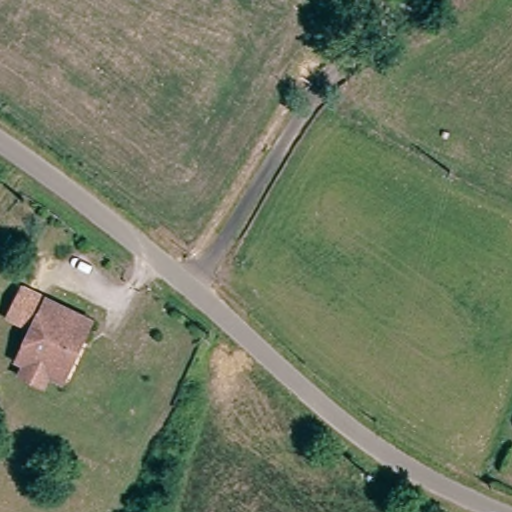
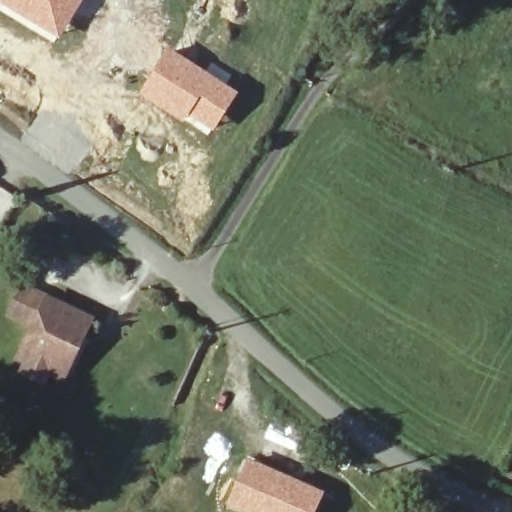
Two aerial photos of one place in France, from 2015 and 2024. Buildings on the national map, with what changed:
new [(0,6),(0,0),(82,0),(57,41),(0,6)]
new [(166,46),(237,92),(209,136),(184,120),(183,122),(136,94),(166,46)]
unchanged [(28,372),(34,359),(25,355),(41,326),(17,314),(33,284),(56,297),(100,321),(91,338),(86,336),(74,358),(80,361),(71,377),(57,370),(50,383),(28,372)]
new [(245,455),(324,492),(315,512),(236,512),(221,504),(245,455)]

